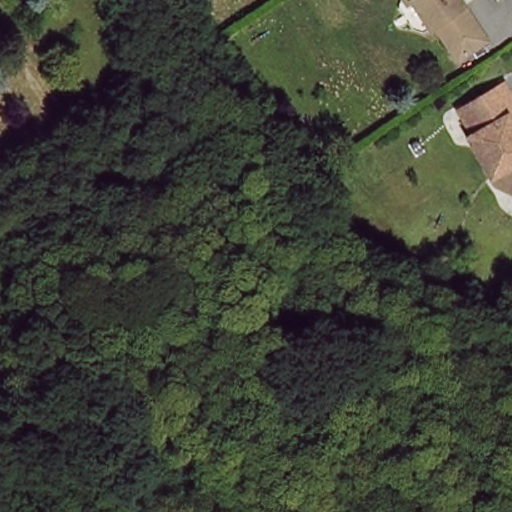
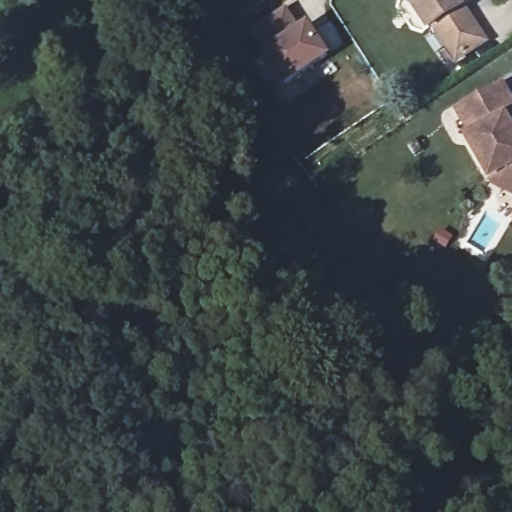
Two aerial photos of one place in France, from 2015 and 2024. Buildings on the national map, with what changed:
unchanged [(460,61),(436,27),(431,31),(411,2),(407,6),(403,0),(458,0),(488,41),(460,61)]
new [(295,30),(308,22),(330,56),(284,85),(263,52),(250,29),(284,7),(295,30)]
unchanged [(499,180),(492,184),(467,144),(472,142),(457,117),(501,90),(512,108),(512,185),(499,180)]

